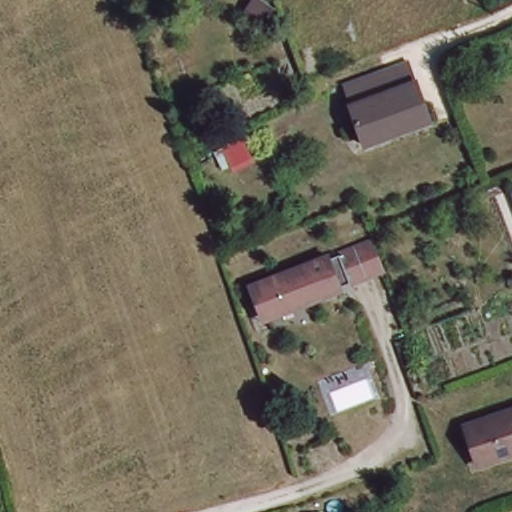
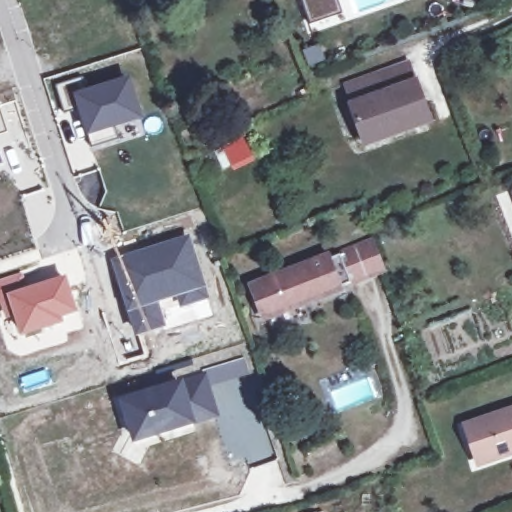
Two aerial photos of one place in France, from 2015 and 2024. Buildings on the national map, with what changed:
new [(341,14),(309,25),(300,0),(337,0),(341,14)]
unchanged [(364,139),(344,85),(383,71),(408,62),(416,84),(427,117),(364,139)]
new [(131,73),(144,117),(86,136),(71,91),(131,73)]
new [(0,137),(0,107),(9,134),(0,137)]
unchanged [(233,169),(225,152),(242,145),(249,160),(233,169)]
new [(0,166),(0,149),(5,164),(0,166)]
new [(189,232),(209,298),(181,307),(178,297),(159,302),(141,307),(119,256),(189,232)]
unchanged [(293,268),(326,255),(328,260),(355,249),(371,242),(383,271),(366,277),(266,316),(254,288),(294,272),(293,268)]
new [(119,256),(141,307),(159,302),(166,326),(134,336),(109,259),(119,256)]
new [(28,285),(65,273),(79,313),(64,318),(65,323),(19,337),(11,315),(4,315),(1,316),(0,312),(0,278),(23,271),(28,285)]
new [(203,377),(214,416),(134,440),(123,402),(203,377)]
unchanged [(511,456),(479,467),(473,449),(466,451),(461,430),(512,413),(512,450),(509,451),(511,456)]

